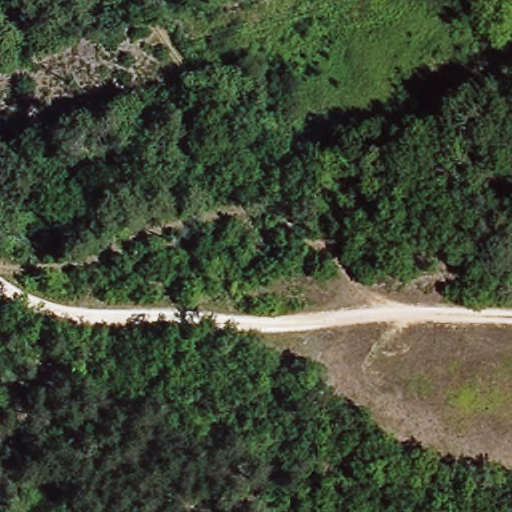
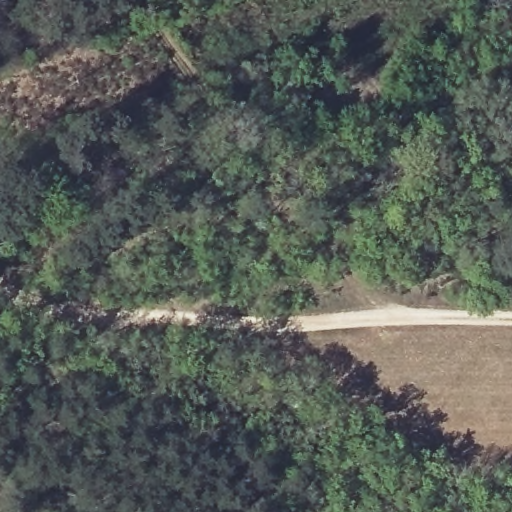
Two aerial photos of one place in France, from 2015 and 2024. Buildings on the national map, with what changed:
[]

